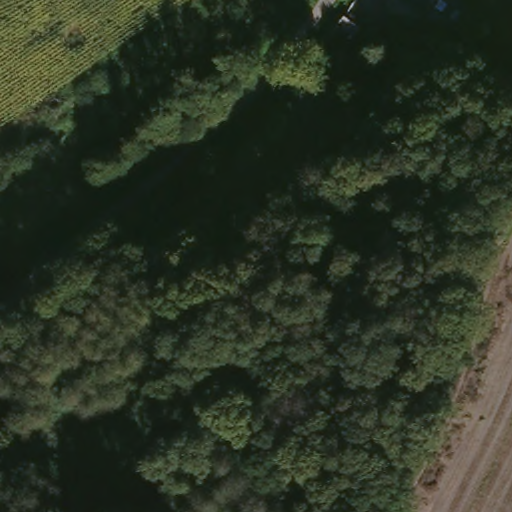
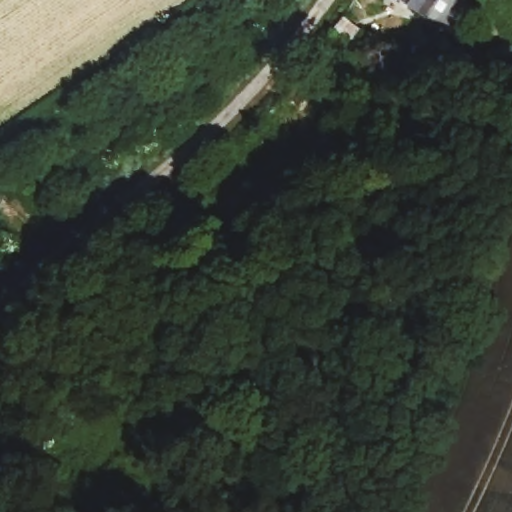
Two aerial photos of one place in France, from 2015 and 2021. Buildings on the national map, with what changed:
unchanged [(394,0),(449,0),(457,5),(442,31),(394,0)]
unchanged [(341,17),(359,30),(351,42),(331,29),(341,17)]

